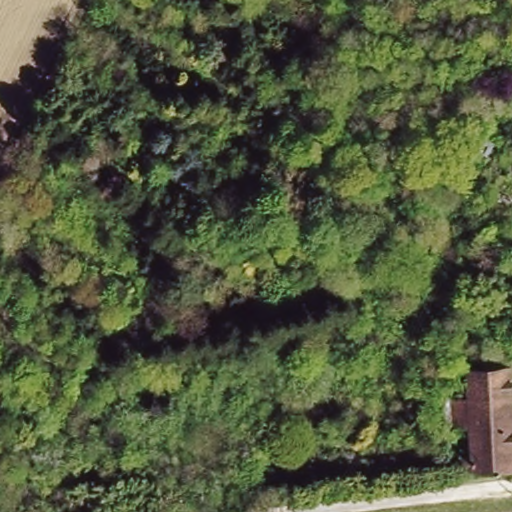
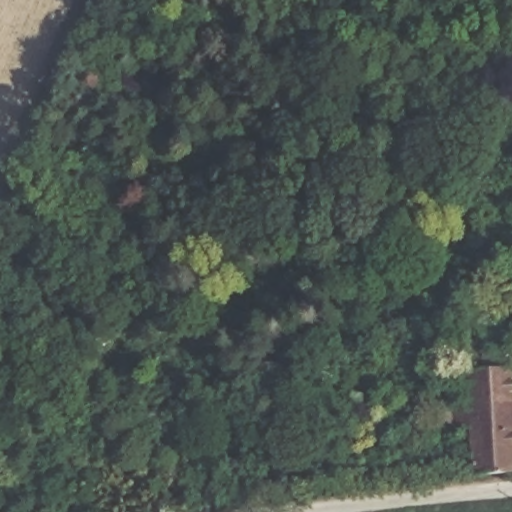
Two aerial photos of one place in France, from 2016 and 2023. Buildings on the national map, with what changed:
unchanged [(461,454),(473,453),(471,424),(454,426),(452,397),(470,396),(468,367),(481,366),(480,349),(511,347),(512,355),(512,467),(462,472),(461,454)]

